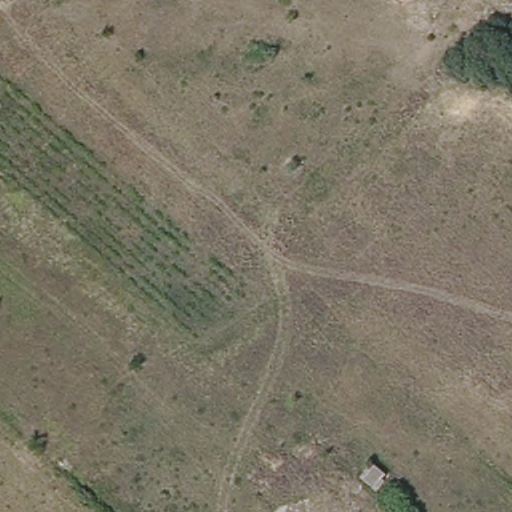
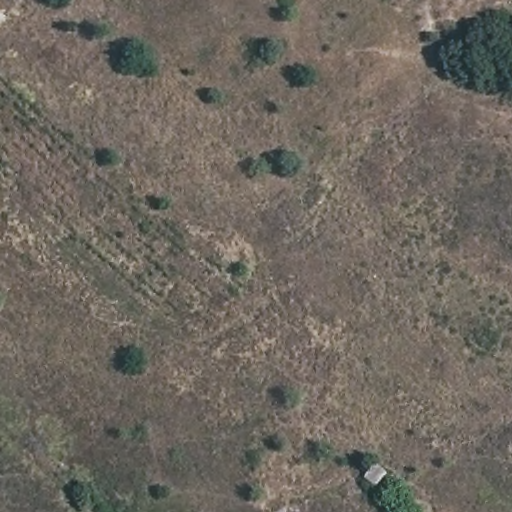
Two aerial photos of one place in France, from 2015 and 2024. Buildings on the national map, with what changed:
unchanged [(378,461),(393,478),(377,493),(363,477),(378,461)]

